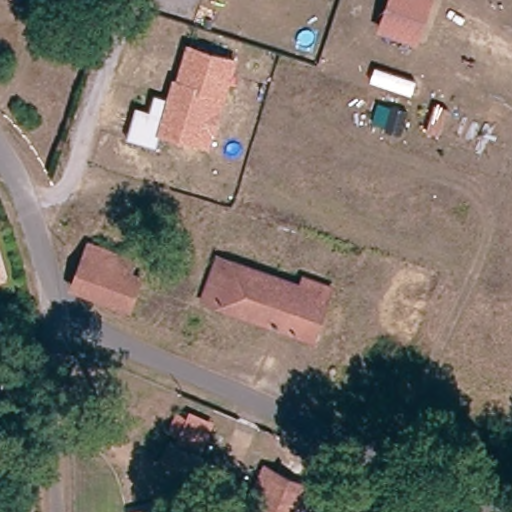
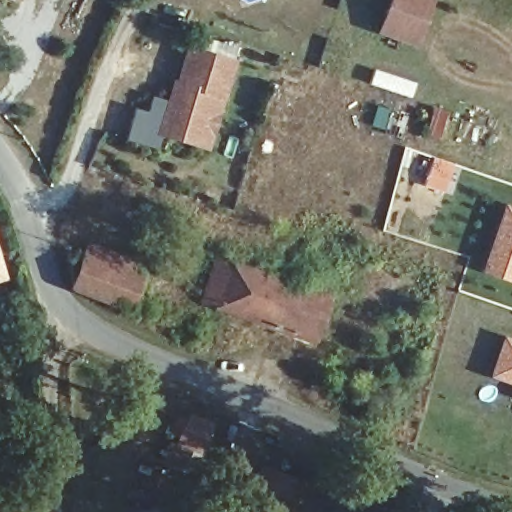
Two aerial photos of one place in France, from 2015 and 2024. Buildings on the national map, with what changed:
unchanged [(417,45),(382,33),(394,0),(429,0),(433,1),(417,45)]
unchanged [(236,59),(209,152),(161,137),(156,150),(126,141),(136,108),(150,112),(155,96),(165,99),(171,81),(175,82),(185,45),(236,59)]
unchanged [(401,141),(386,137),(392,113),(407,117),(401,141)]
new [(512,207),(512,281),(481,270),(505,204),(512,207)]
unchanged [(130,317),(75,297),(85,263),(89,251),(135,268),(131,281),(142,285),(130,317)]
unchanged [(204,304),(219,261),(302,291),(305,282),(332,292),(314,343),(204,304)]
unchanged [(0,279),(0,262),(5,277),(0,279)]
new [(502,334),(512,338),(512,386),(487,376),(502,334)]
unchanged [(211,427),(200,454),(179,444),(191,418),(211,427)]
unchanged [(271,466),(319,487),(308,512),(251,512),(256,499),(271,466)]
unchanged [(184,496),(187,512),(128,512),(127,510),(184,496)]

